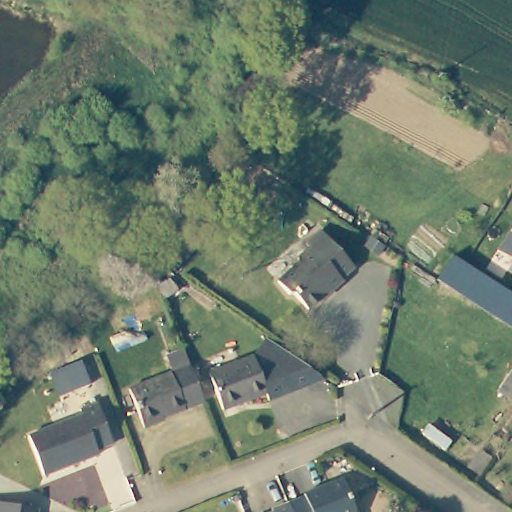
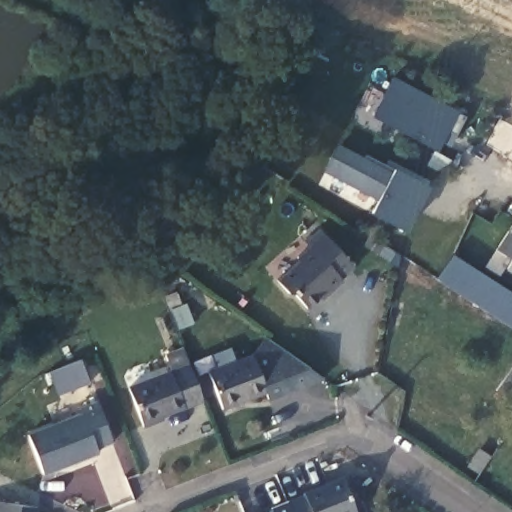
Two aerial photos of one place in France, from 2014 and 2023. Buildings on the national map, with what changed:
new [(451,148),(443,142),(438,151),(373,117),(394,76),(459,111),(467,117),(451,148)]
new [(409,231),(372,213),(378,201),(324,171),(339,142),(396,167),(432,187),(409,231)]
unchanged [(512,270),(505,265),(510,257),(494,247),(512,220),(512,270)]
unchanged [(357,271),(344,283),(346,285),(334,297),(332,295),(312,314),(298,299),(292,297),(280,285),(300,266),(301,260),(311,250),(308,246),(323,233),(357,271)]
new [(512,327),(437,280),(454,254),(512,291),(512,327)]
unchanged [(274,400),(271,393),(227,411),(213,373),(256,355),(271,341),(278,346),(328,380),(274,400)]
unchanged [(205,401),(144,425),(130,391),(174,373),(168,358),(185,351),(192,367),(205,401)]
unchanged [(79,360),(90,386),(60,397),(50,370),(79,360)]
unchanged [(512,404),(496,394),(512,371),(512,404)]
unchanged [(117,442),(99,449),(102,455),(44,476),(28,435),(84,412),(81,407),(100,400),(117,442)]
unchanged [(305,497),(304,494),(344,480),(357,512),(292,512),(289,504),(305,497)]
unchanged [(39,510),(38,512),(0,512),(0,501),(39,510)]
unchanged [(292,512),(270,512),(289,504),(292,512)]

